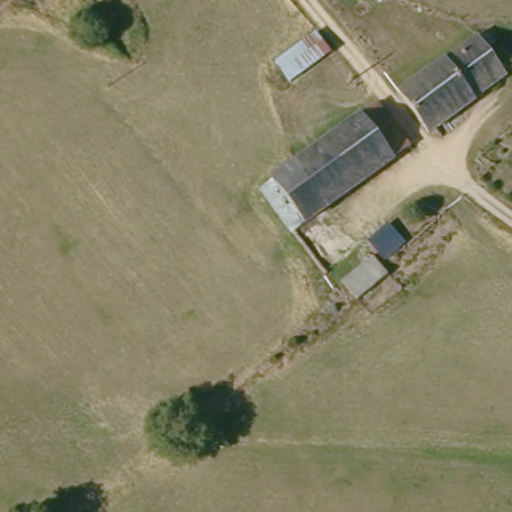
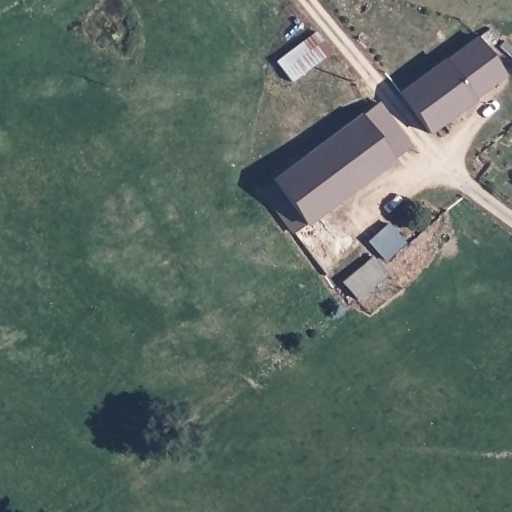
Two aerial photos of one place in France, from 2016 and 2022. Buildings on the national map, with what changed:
unchanged [(294,78),(281,61),(317,31),(332,49),(294,78)]
unchanged [(481,52),(500,75),(423,135),(395,100),(485,31),(497,40),(481,52)]
unchanged [(297,225),(264,181),(366,101),(368,100),(402,143),(300,222),(297,225)]
unchanged [(390,261),(370,240),(391,221),(410,242),(390,261)]
unchanged [(394,275),(363,300),(347,280),(347,279),(375,255),(385,265),(394,275)]

